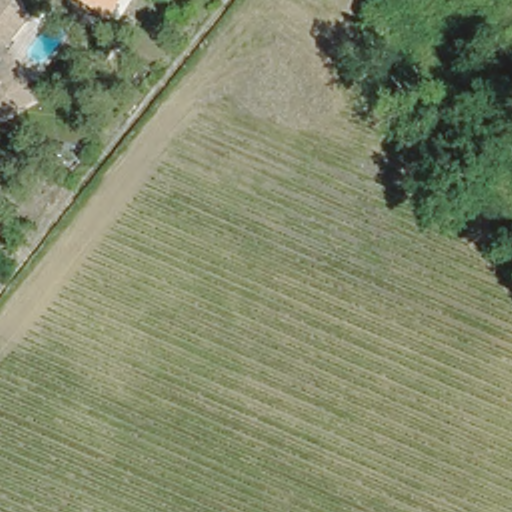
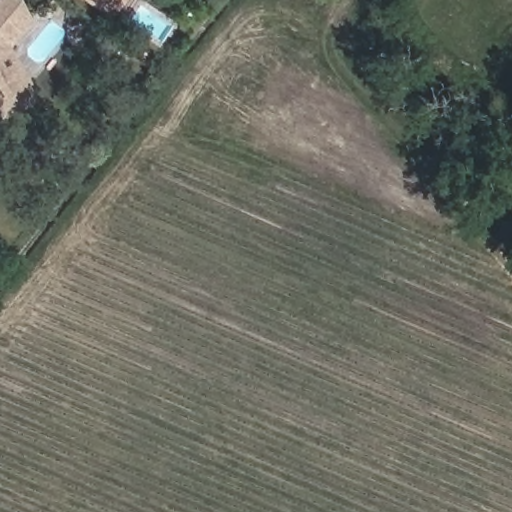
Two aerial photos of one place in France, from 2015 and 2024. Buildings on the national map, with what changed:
unchanged [(0,95),(0,0),(15,0),(27,19),(3,49),(20,76),(23,81),(0,95)]
unchanged [(85,0),(122,0),(112,18),(85,0)]

